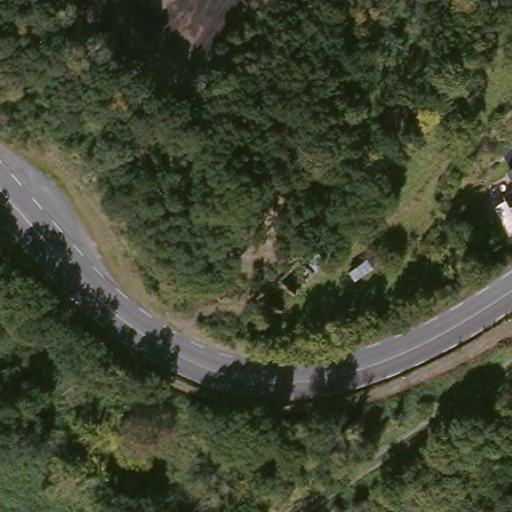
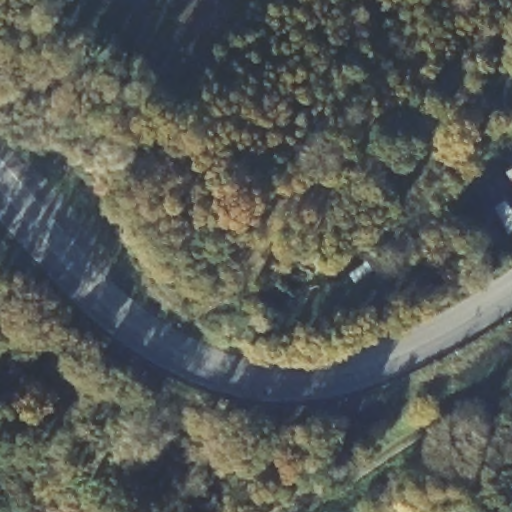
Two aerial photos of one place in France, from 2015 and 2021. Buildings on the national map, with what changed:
unchanged [(512,174),(508,169),(512,166),(512,174)]
unchanged [(512,193),(512,197),(510,195),(512,193)]
unchanged [(512,198),(512,229),(498,207),(512,198)]
unchanged [(302,303),(270,339),(244,325),(281,285),(302,303)]

